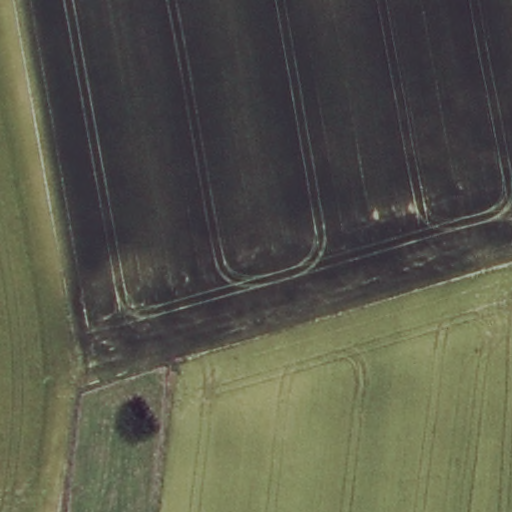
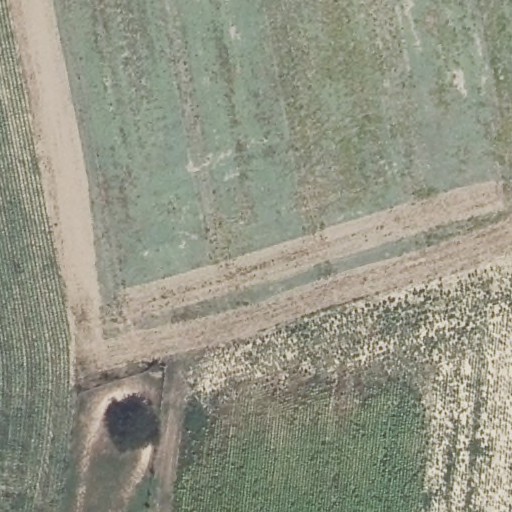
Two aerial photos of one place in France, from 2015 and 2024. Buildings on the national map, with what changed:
[]

